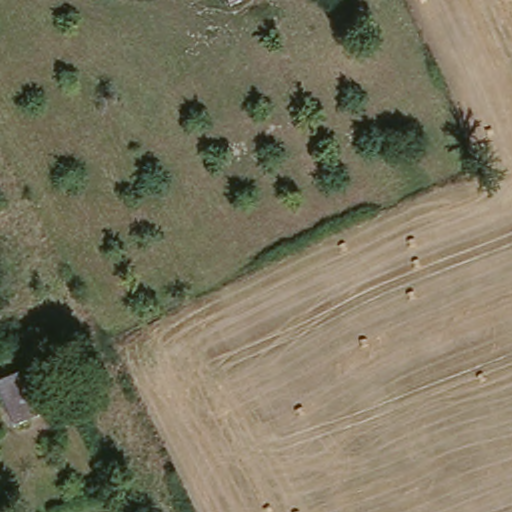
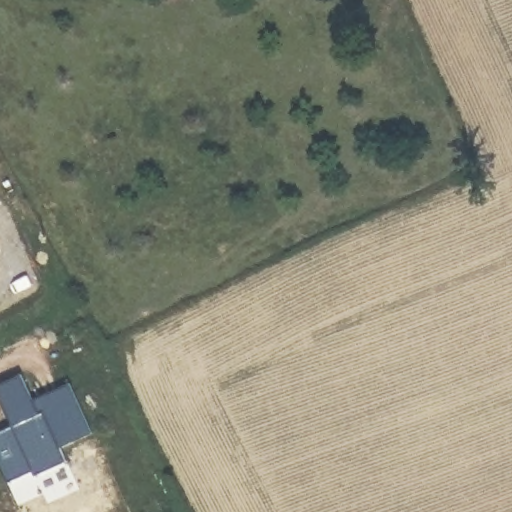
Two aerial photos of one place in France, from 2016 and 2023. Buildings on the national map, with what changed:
demolished [(0,386),(0,382),(21,368),(42,412),(19,424),(0,386)]
new [(90,432),(60,446),(66,461),(36,475),(34,470),(10,481),(0,460),(0,432),(14,425),(0,393),(0,384),(22,372),(34,400),(69,384),(90,432)]

